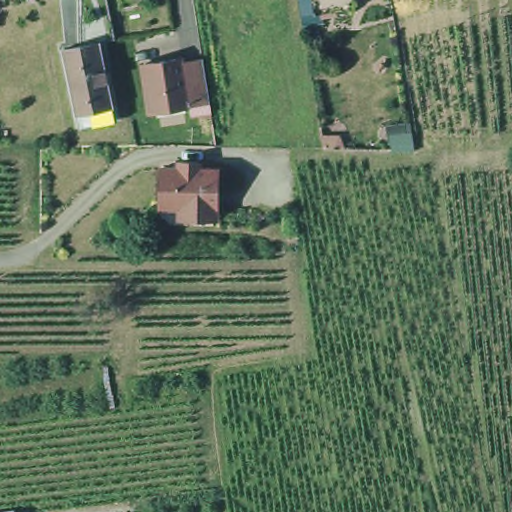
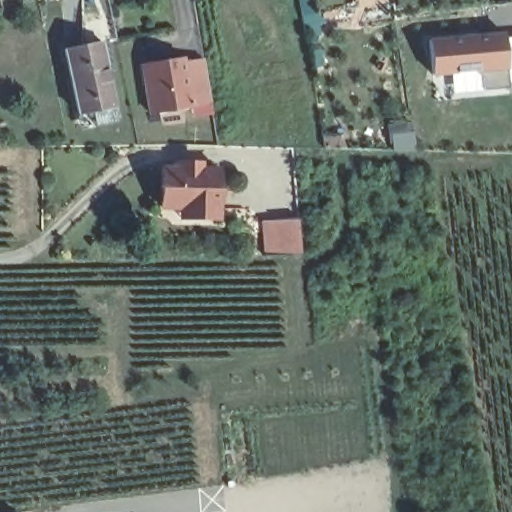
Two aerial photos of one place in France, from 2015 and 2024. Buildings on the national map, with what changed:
unchanged [(316,8),(315,0),(362,0),(316,8)]
new [(507,33),(510,90),(485,92),(483,75),(433,77),(430,39),(507,33)]
new [(512,84),(510,85),(508,35),(512,34),(512,84)]
unchanged [(118,110),(82,118),(70,54),(105,46),(118,110)]
unchanged [(199,102),(179,105),(180,106),(156,110),(138,113),(133,83),(138,82),(135,62),(148,60),(155,59),(155,61),(160,60),(162,58),(172,57),(172,61),(192,58),(199,102)]
unchanged [(338,135),(341,147),(323,147),(321,136),(338,135)]
unchanged [(204,159),(205,167),(223,166),(225,220),(182,222),(181,211),(156,212),(158,158),(204,159)]
new [(299,219),(301,255),(264,257),(261,221),(299,219)]
unchanged [(16,512),(8,512),(15,511),(16,512)]

